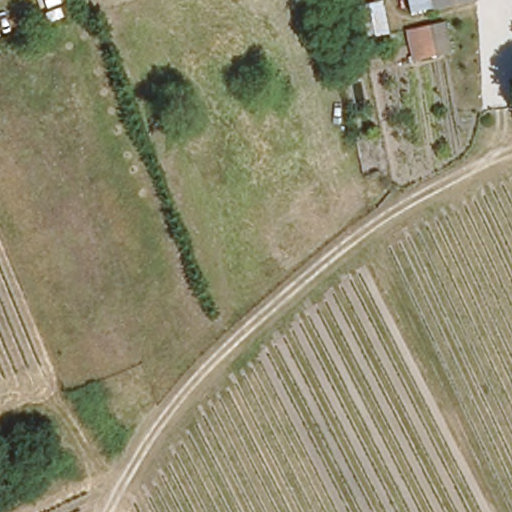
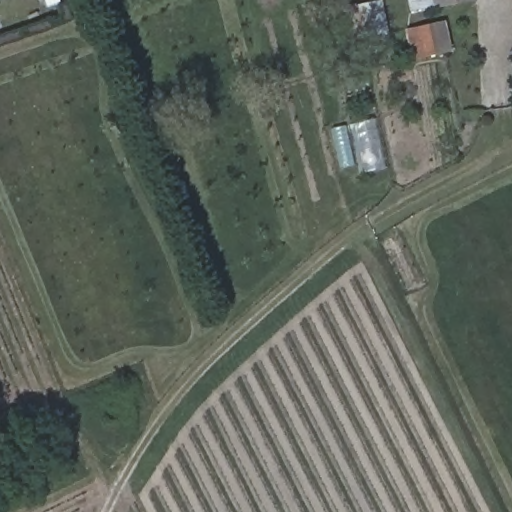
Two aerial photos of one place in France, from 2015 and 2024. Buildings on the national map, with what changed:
unchanged [(408,10),(407,0),(427,0),(428,6),(408,10)]
unchanged [(427,0),(467,0),(428,6),(427,0)]
unchanged [(456,54),(413,60),(406,31),(447,25),(456,54)]

